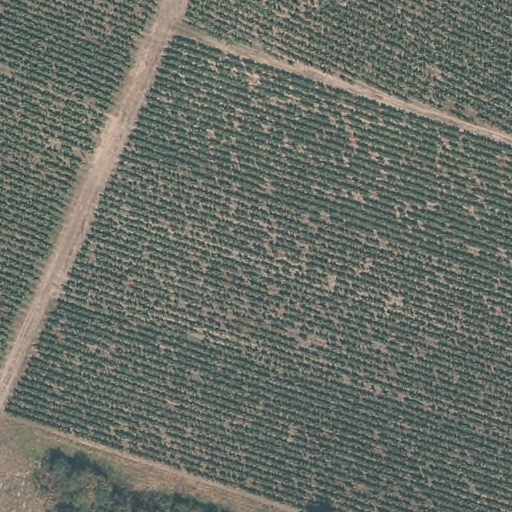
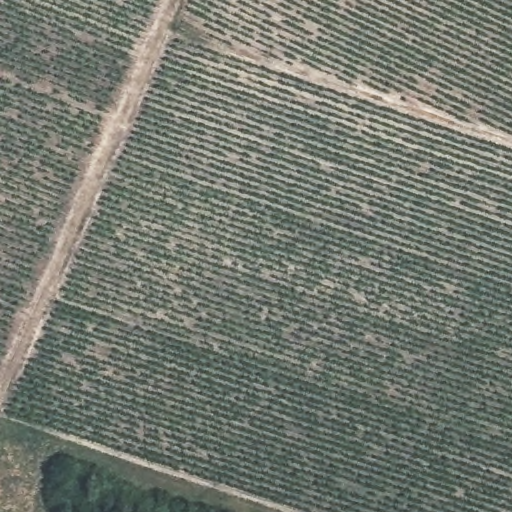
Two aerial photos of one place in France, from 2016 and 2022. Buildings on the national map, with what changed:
[]

